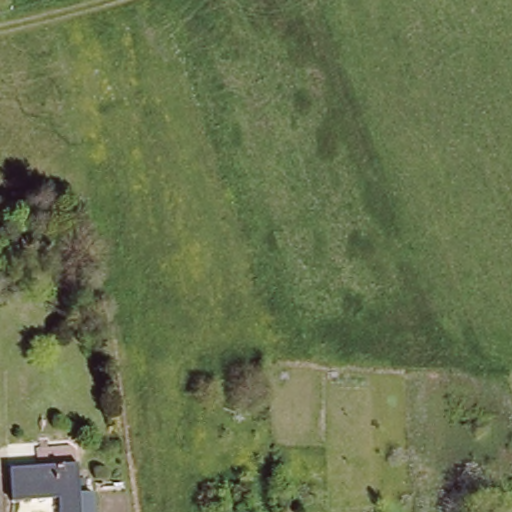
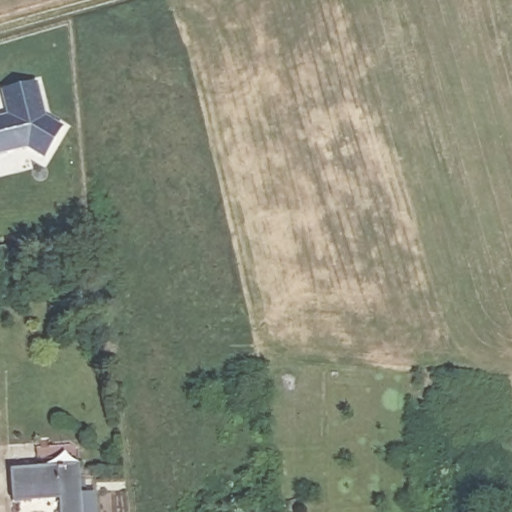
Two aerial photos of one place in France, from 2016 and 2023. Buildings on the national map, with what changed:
new [(6,116),(1,91),(36,83),(45,117),(61,128),(43,160),(25,149),(0,156),(0,117),(6,116)]
unchanged [(11,501),(10,469),(75,466),(77,498),(90,498),(90,512),(56,512),(55,499),(11,501)]

